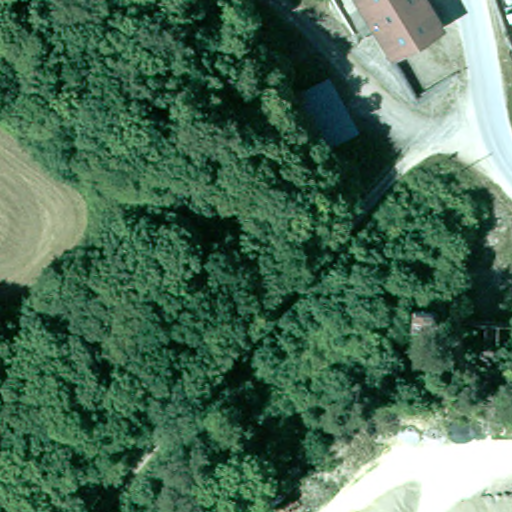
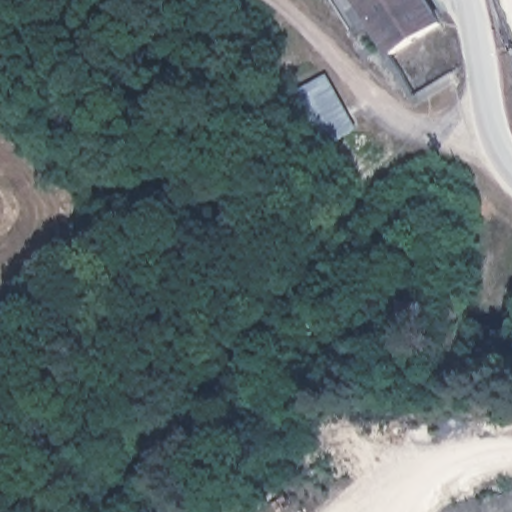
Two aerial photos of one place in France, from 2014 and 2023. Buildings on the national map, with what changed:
unchanged [(384,53),(353,0),(420,0),(434,23),(384,53)]
unchanged [(357,129),(321,149),(290,98),(327,76),(357,129)]
unchanged [(482,313),(512,308),(512,347),(486,350),(482,313)]

